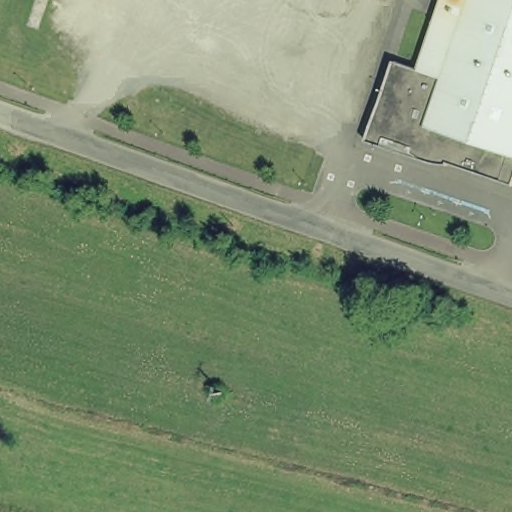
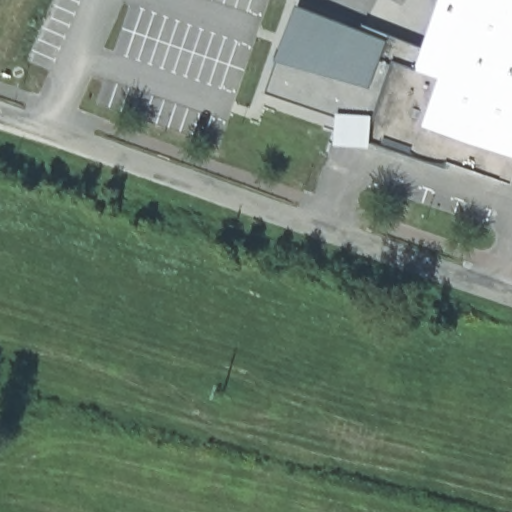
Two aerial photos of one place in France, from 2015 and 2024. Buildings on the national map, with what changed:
unchanged [(428,49),(444,0),(512,0),(512,186),(451,166),(437,166),(370,144),(375,131),(400,64),(421,71),(428,49)]
new [(271,94),(302,6),(428,49),(421,71),(400,64),(375,131),(271,94)]

